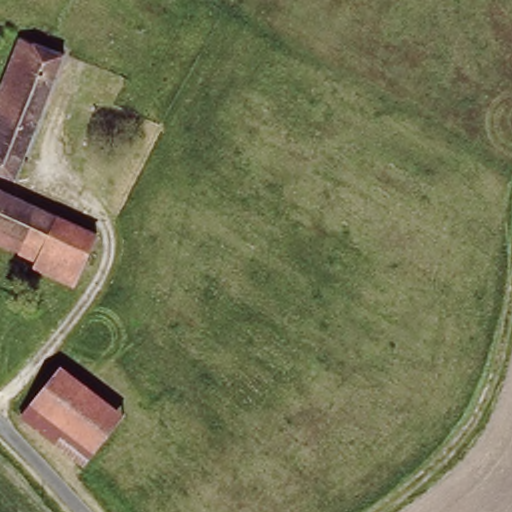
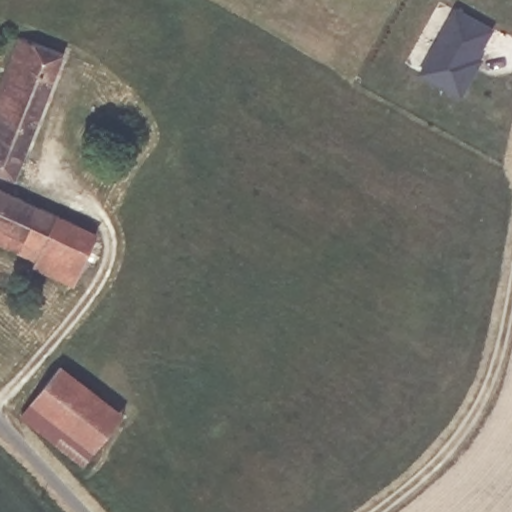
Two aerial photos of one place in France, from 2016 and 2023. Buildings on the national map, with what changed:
new [(481,57),(486,60),(463,98),(420,74),(457,7),(497,29),(481,57)]
unchanged [(50,52),(30,116),(8,176),(0,174),(0,70),(10,38),(50,52)]
unchanged [(32,265),(0,250),(0,193),(54,217),(32,265)]
unchanged [(92,235),(70,289),(30,271),(32,265),(54,217),(92,235)]
unchanged [(116,412),(88,448),(29,402),(57,365),(116,412)]

